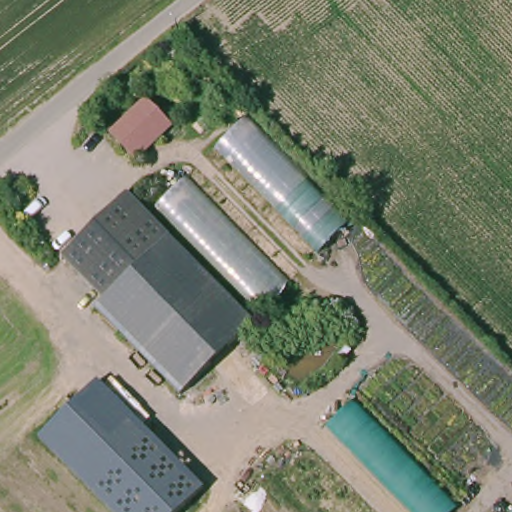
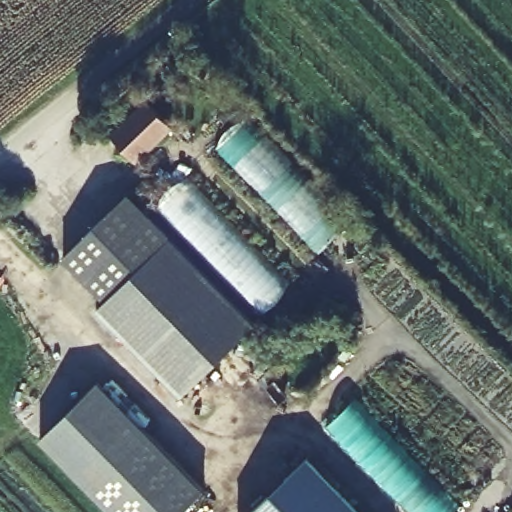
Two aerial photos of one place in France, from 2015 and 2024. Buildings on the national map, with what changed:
unchanged [(140,99),(165,124),(131,160),(105,136),(140,99)]
unchanged [(240,109),(350,211),(320,244),(210,141),(240,109)]
unchanged [(182,174),(292,277),(260,312),(150,208),(182,174)]
unchanged [(115,193),(163,238),(102,303),(55,258),(115,193)]
unchanged [(251,320),(182,394),(90,309),(98,300),(102,303),(163,238),(251,320)]
unchanged [(206,489),(182,512),(108,512),(39,439),(97,379),(206,489)]
unchanged [(462,502),(452,512),(410,512),(326,428),(357,398),(462,502)]
new [(364,512),(251,512),(304,456),(364,512)]

